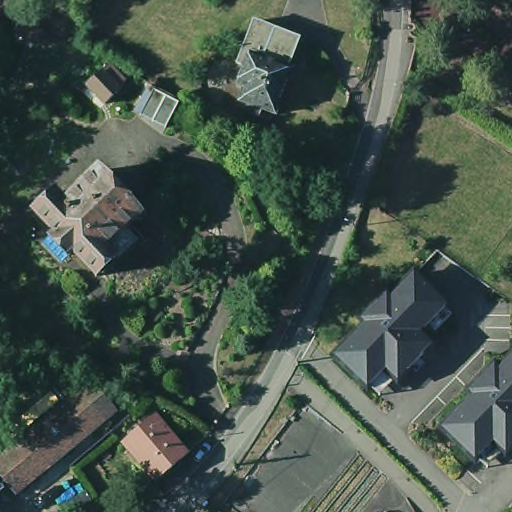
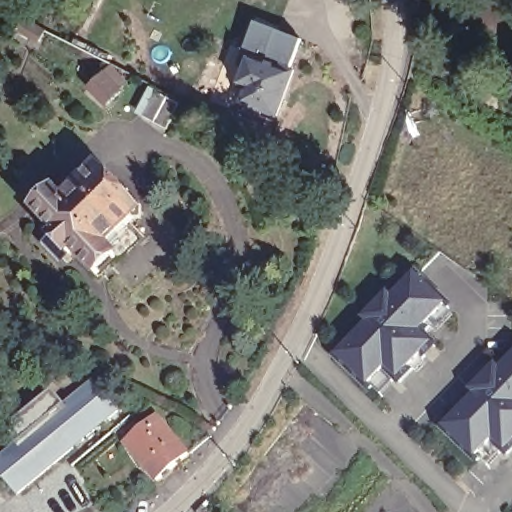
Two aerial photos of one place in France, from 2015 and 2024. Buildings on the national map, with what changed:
unchanged [(19,30),(25,19),(43,28),(37,40),(19,30)]
unchanged [(252,103),(243,99),(249,86),(242,84),(250,65),(243,63),(260,21),(305,39),(293,68),(297,70),(279,114),(265,108),(262,115),(250,110),(252,103)]
unchanged [(120,90),(105,103),(88,85),(103,72),(120,90)]
unchanged [(180,103),(166,128),(141,114),(155,89),(180,103)]
unchanged [(136,212),(144,211),(145,224),(140,225),(130,234),(143,249),(126,265),(120,264),(100,282),(77,257),(72,262),(55,243),(60,238),(40,216),(60,198),(67,207),(101,175),(136,212)]
unchanged [(427,333),(438,347),(393,383),(385,375),(370,388),(335,353),(362,323),(360,319),(386,292),(390,295),(413,271),(453,307),(427,333)]
unchanged [(502,456),(492,447),(477,463),(438,425),(468,393),(465,390),(494,362),(497,366),(512,352),(512,447),(502,456)]
unchanged [(0,463),(80,397),(92,387),(116,416),(105,426),(15,499),(0,480),(0,463)]
unchanged [(130,447),(160,421),(192,458),(193,460),(161,485),(130,447)]
unchanged [(203,507),(208,512),(198,512),(203,507)]

